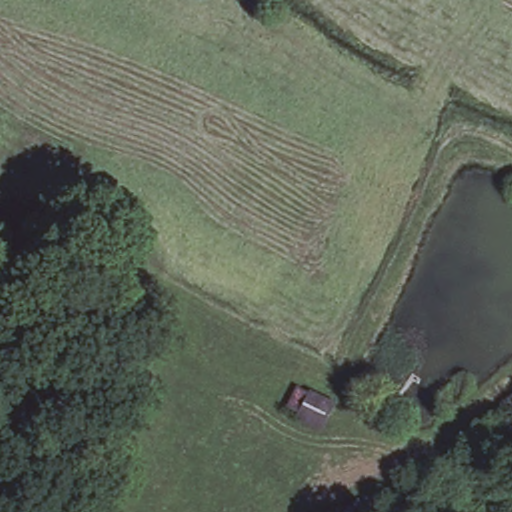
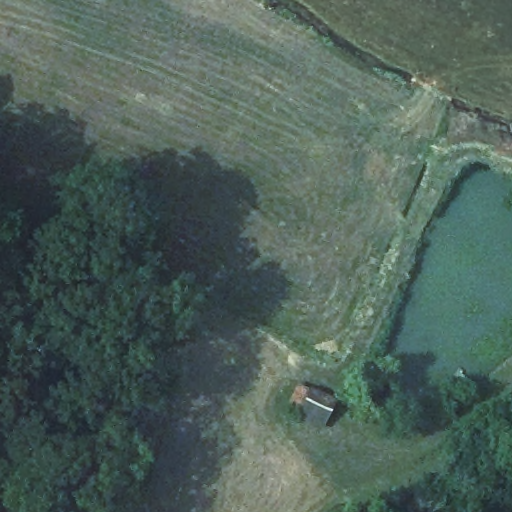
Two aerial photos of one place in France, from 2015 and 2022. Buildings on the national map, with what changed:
unchanged [(298,382),(339,400),(324,430),(297,419),(300,410),(289,403),(298,382)]

